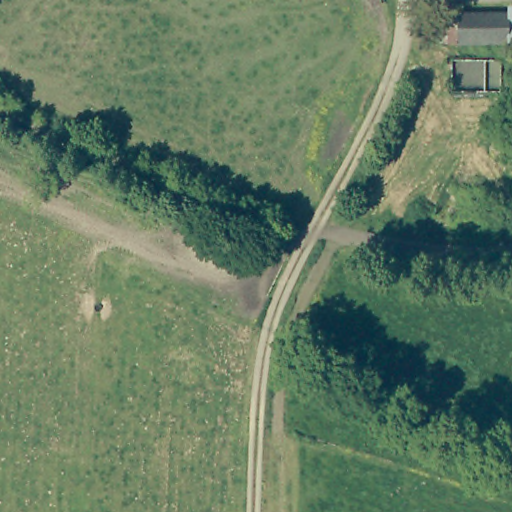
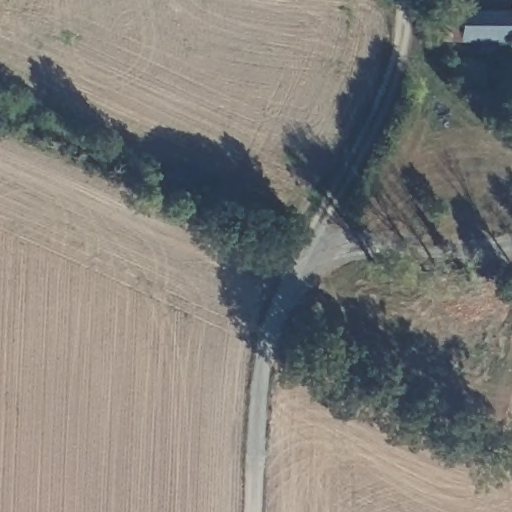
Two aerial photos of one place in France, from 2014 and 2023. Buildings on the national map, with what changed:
unchanged [(443,38),(446,8),(507,10),(512,10),(512,39),(443,38)]

